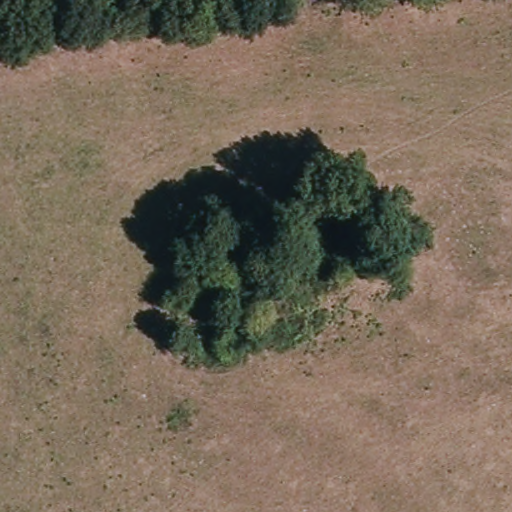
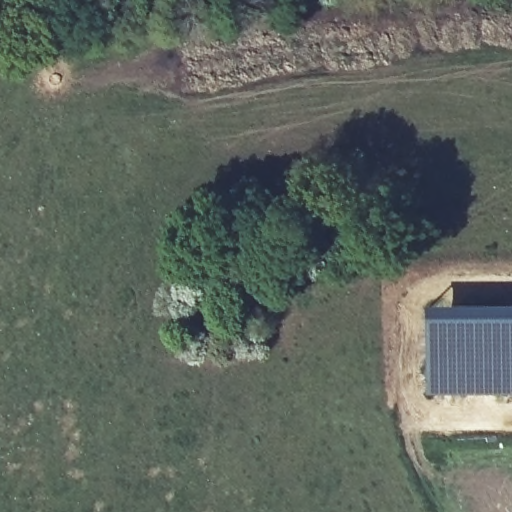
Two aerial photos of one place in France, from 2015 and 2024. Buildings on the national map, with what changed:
new [(425,307),(512,307),(512,396),(427,396),(425,307)]

